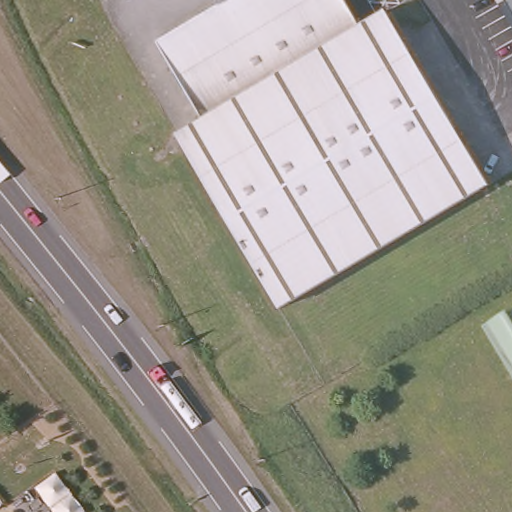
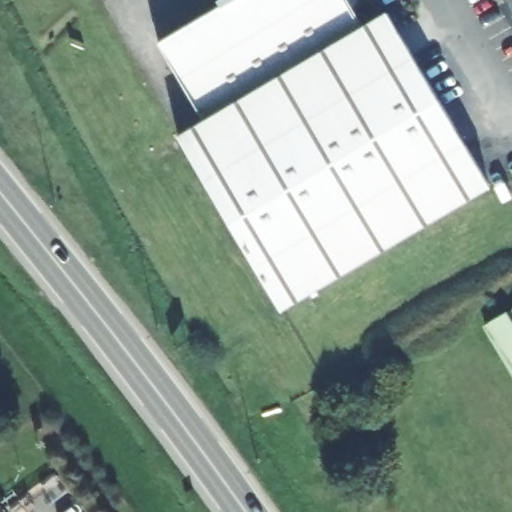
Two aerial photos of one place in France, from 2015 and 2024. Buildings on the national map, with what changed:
unchanged [(223,7),(235,0),(342,0),(359,29),(379,77),(324,102),(269,125),(223,7)]
unchanged [(503,1),(502,0),(512,0),(512,27),(499,4),(503,1)]
unchanged [(176,136),(201,121),(158,44),(223,7),(269,125),(294,205),(203,182),(176,136)]
unchanged [(388,12),(416,60),(379,77),(359,29),(388,12)]
unchanged [(321,287),(294,205),(269,125),(324,102),(379,77),(416,60),(487,189),(410,235),(379,254),(321,287)]
unchanged [(260,278),(203,182),(294,205),(321,287),(316,290),(279,312),(260,278)]
unchanged [(512,311),(512,346),(504,350),(491,325),(512,311)]
unchanged [(512,346),(512,352),(504,350),(512,346)]
unchanged [(512,352),(512,363),(504,350),(512,352)]

